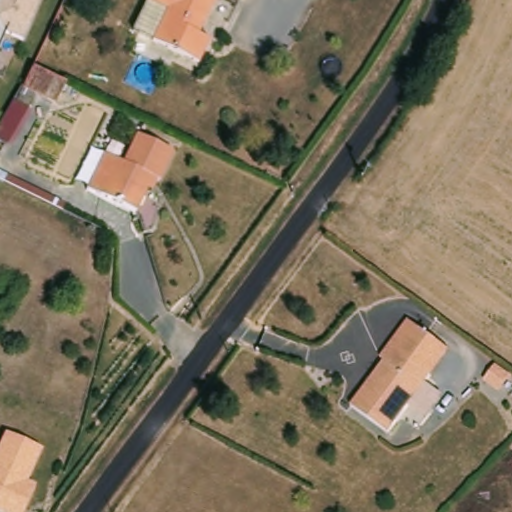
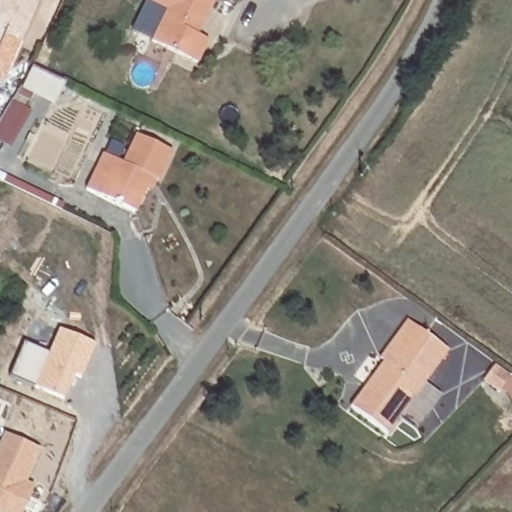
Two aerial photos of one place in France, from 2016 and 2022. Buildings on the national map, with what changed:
unchanged [(5,34),(0,45),(0,0),(41,0),(23,42),(5,34)]
unchanged [(148,0),(215,0),(198,35),(210,41),(198,64),(152,41),(167,10),(148,0)]
unchanged [(32,66),(64,82),(55,102),(23,87),(32,66)]
unchanged [(103,152),(124,162),(137,133),(172,150),(158,180),(151,176),(135,211),(86,188),(103,152)]
unchanged [(351,406),(383,364),(380,359),(407,322),(428,338),(449,353),(431,377),(390,435),(351,406)]
new [(64,396),(10,373),(25,339),(51,349),(61,327),(96,342),(82,375),(75,372),(71,382),(64,396)]
unchanged [(41,451),(27,483),(33,486),(21,512),(0,512),(0,441),(3,433),(41,451)]

